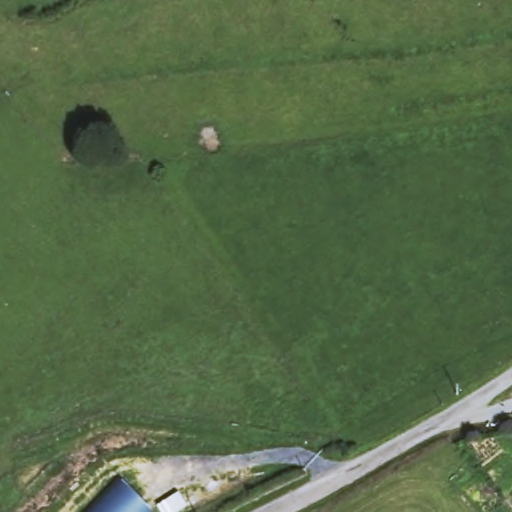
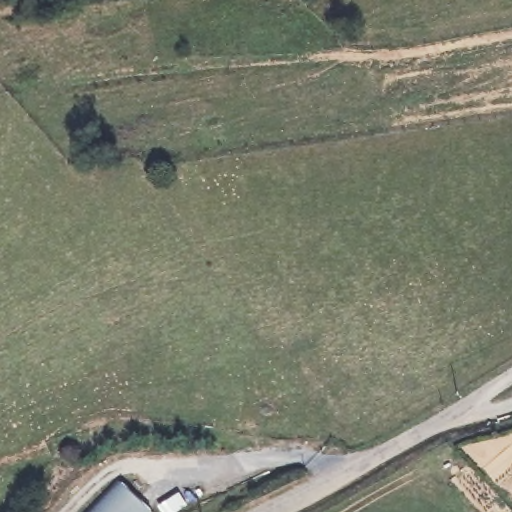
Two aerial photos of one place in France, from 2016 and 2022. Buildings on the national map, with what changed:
unchanged [(90,512),(120,481),(152,512),(90,512)]

